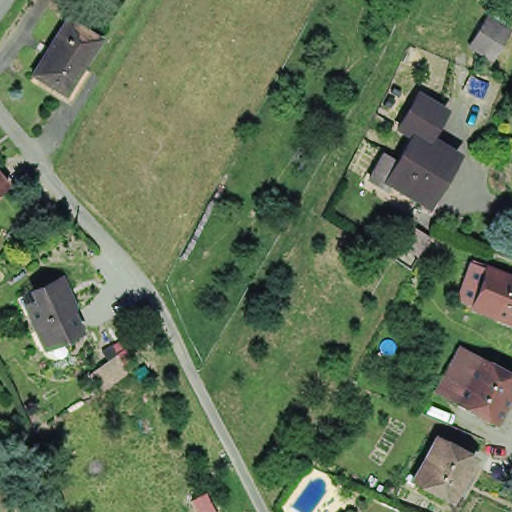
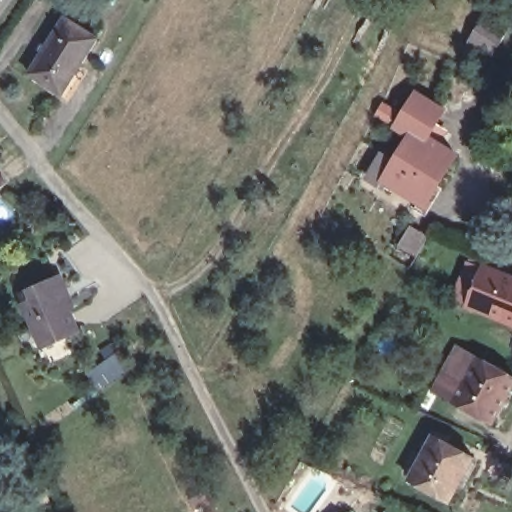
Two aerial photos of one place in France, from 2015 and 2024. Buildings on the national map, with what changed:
unchanged [(512,28),(512,30),(495,56),(472,41),(491,13),(512,28)]
unchanged [(62,90),(30,69),(66,15),(97,36),(62,90)]
unchanged [(391,178),(417,135),(402,125),(423,91),(449,107),(432,134),(461,153),(431,203),(391,178)]
unchanged [(7,186),(0,193),(0,173),(10,184),(7,186)]
unchanged [(469,302),(485,264),(512,275),(512,319),(469,302)]
unchanged [(65,297),(69,298),(71,299),(72,301),(72,304),(72,307),(70,310),(77,326),(65,332),(64,337),(62,339),(61,339),(57,338),(55,337),(52,337),(41,342),(24,303),(20,293),(35,287),(56,278),(65,297)]
unchanged [(498,420),(460,399),(461,396),(441,387),(451,369),(464,344),(483,355),(512,371),(512,396),(498,420)]
unchanged [(107,362),(102,356),(110,349),(115,356),(117,355),(125,371),(102,387),(92,373),(107,362)]
unchanged [(451,499),(411,478),(436,433),(475,454),(451,499)]

